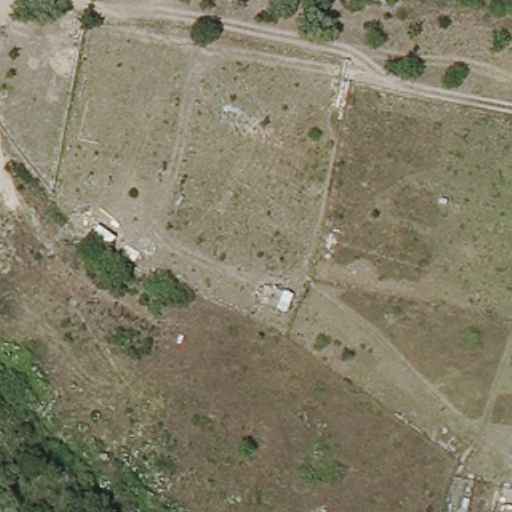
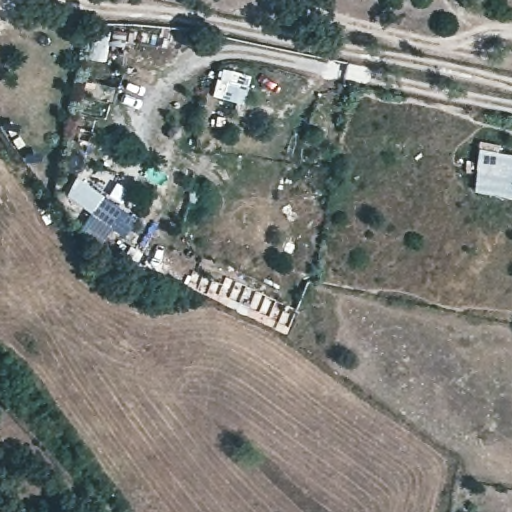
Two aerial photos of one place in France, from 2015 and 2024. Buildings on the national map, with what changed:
new [(501,142),(499,150),(512,152),(512,195),(474,190),(479,139),(501,142)]
new [(111,227),(101,241),(79,226),(90,209),(64,192),(76,175),(137,216),(124,235),(111,227)]

